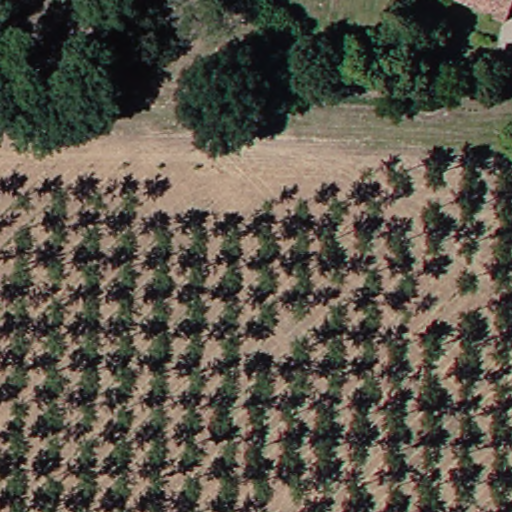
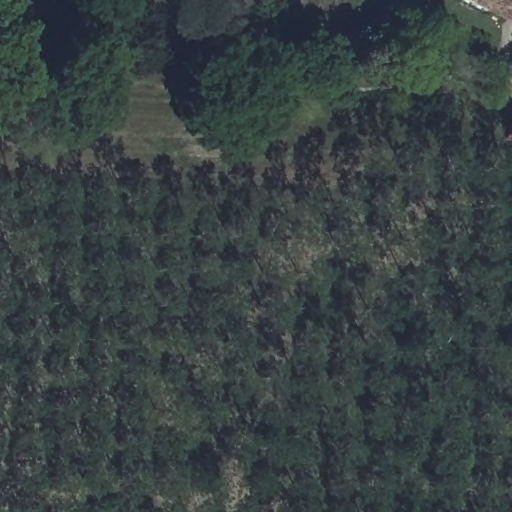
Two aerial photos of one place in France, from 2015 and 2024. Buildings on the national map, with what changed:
unchanged [(446,0),(502,0),(491,25),(446,0)]

